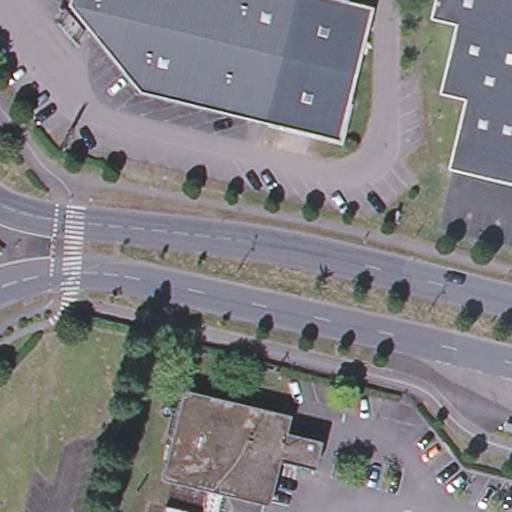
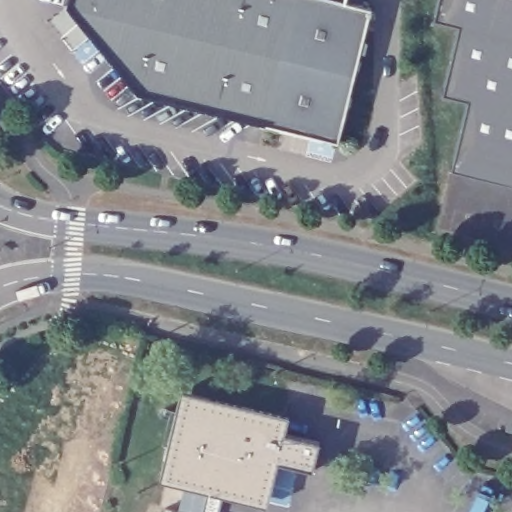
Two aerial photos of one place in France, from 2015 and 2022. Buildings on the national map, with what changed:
unchanged [(345,5),(370,12),(338,144),(136,94),(67,8),(69,0),(322,0),(345,5)]
unchanged [(345,5),(322,0),(346,0),(345,5)]
unchanged [(512,182),(450,167),(467,98),(442,92),(458,23),(433,16),(437,0),(512,0),(512,182)]
unchanged [(165,478),(162,472),(180,402),(185,398),(275,419),(279,423),(277,433),(315,442),(309,469),(270,460),(262,497),(257,500),(214,490),(213,495),(216,498),(215,501),(212,501),(210,507),(213,510),(213,512),(195,512),(201,487),(165,478)]
unchanged [(173,512),(158,512),(159,508),(173,512)]

